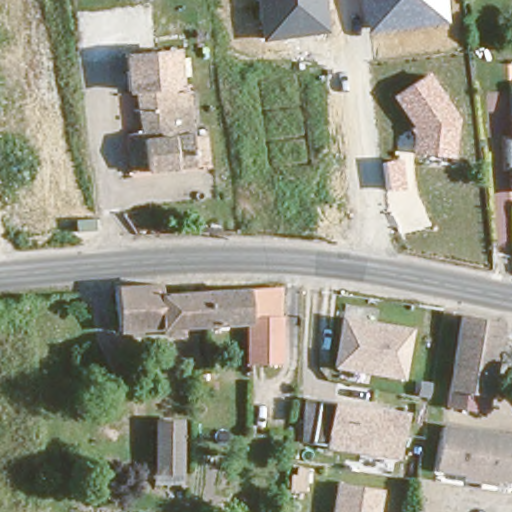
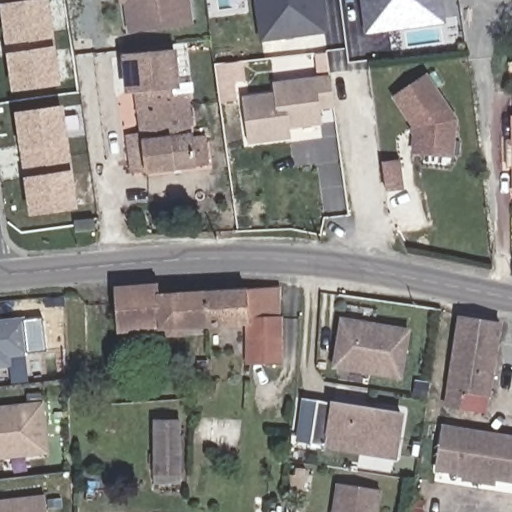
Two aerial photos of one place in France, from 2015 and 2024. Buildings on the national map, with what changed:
new [(58,82),(14,87),(3,0),(48,0),(58,82)]
new [(194,24),(129,32),(124,3),(120,3),(120,0),(190,0),(194,24)]
unchanged [(328,32),(261,41),(255,0),(324,0),(328,32)]
unchanged [(362,0),(444,0),(447,21),(366,33),(362,0)]
unchanged [(151,176),(132,179),(127,136),(139,133),(132,92),(125,94),(122,55),(181,49),(185,87),(187,92),(192,131),(198,131),(204,166),(151,176)]
unchanged [(393,96),(427,73),(458,118),(454,156),(412,153),(413,127),(393,96)]
new [(291,138),(248,144),(242,97),(274,92),(273,81),(329,74),(334,108),(320,110),(323,125),(290,130),(291,138)]
new [(61,107),(73,206),(29,211),(17,113),(61,107)]
unchanged [(509,169),(509,142),(512,142),(512,169),(509,169)]
unchanged [(386,191),(382,160),(401,158),(404,189),(386,191)]
unchanged [(206,322),(115,325),(114,276),(164,275),(164,285),(205,285),(206,322)]
unchanged [(280,284),(281,308),(284,308),(281,357),(253,357),(254,320),(206,322),(205,285),(280,284)]
new [(10,357),(12,367),(0,369),(0,318),(25,315),(29,355),(10,357)]
unchanged [(402,377),(335,366),(343,319),(409,330),(402,377)]
unchanged [(485,396),(459,392),(456,408),(444,406),(458,319),(474,322),(496,326),(485,396)]
demolished [(434,360),(409,356),(415,323),(439,328),(434,360)]
unchanged [(396,459),(299,443),(301,399),(401,414),(396,459)]
new [(0,459),(0,405),(44,401),(49,454),(0,459)]
unchanged [(182,412),(180,466),(154,465),(155,412),(182,412)]
unchanged [(439,469),(447,426),(512,437),(512,481),(439,469)]
unchanged [(337,512),(342,484),(383,491),(380,512),(337,512)]
new [(48,512),(0,512),(0,499),(46,494),(48,512)]

